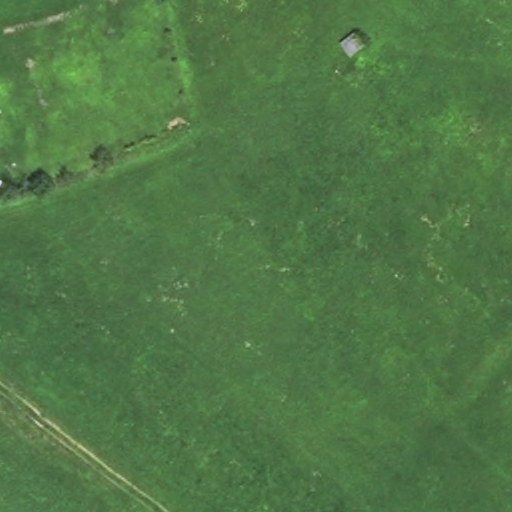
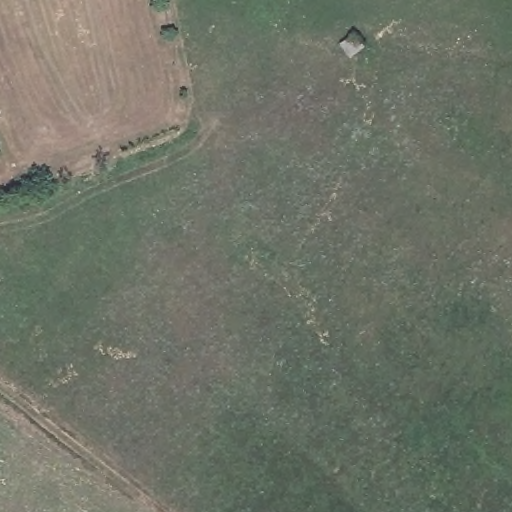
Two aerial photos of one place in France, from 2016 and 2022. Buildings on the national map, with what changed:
unchanged [(336,39),(353,24),(367,38),(350,56),(336,39)]

